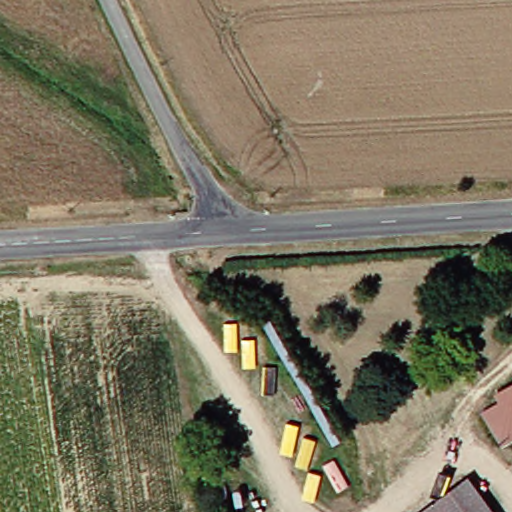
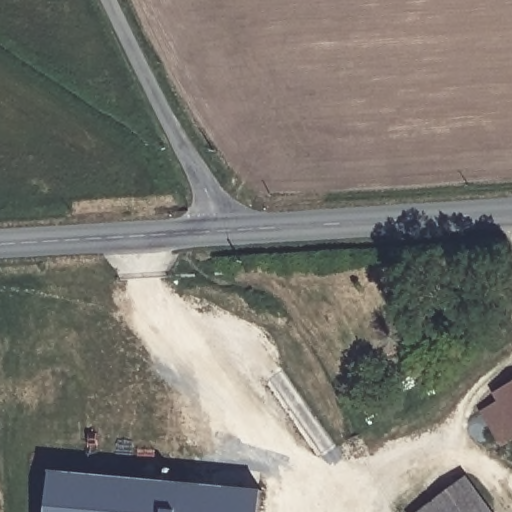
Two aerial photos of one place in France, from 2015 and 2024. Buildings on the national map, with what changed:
unchanged [(500,445),(480,415),(498,402),(493,394),(512,382),(512,444),(509,440),(500,445)]
new [(259,512),(45,512),(49,470),(261,489),(259,512)]
unchanged [(489,512),(416,512),(471,482),(489,512)]

